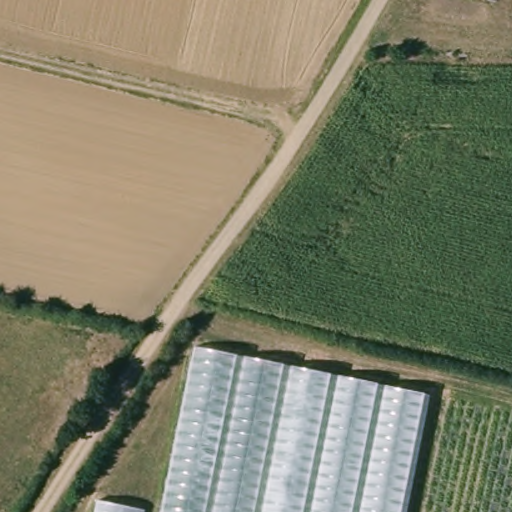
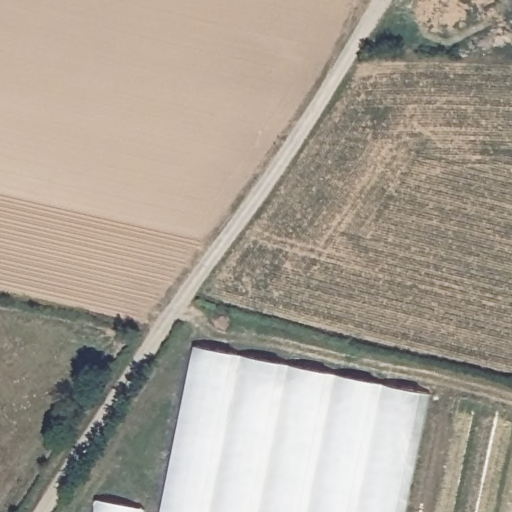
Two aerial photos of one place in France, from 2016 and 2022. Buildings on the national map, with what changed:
unchanged [(426,394),(403,512),(156,512),(187,345),(426,394)]
unchanged [(139,512),(93,512),(95,503),(139,512)]

